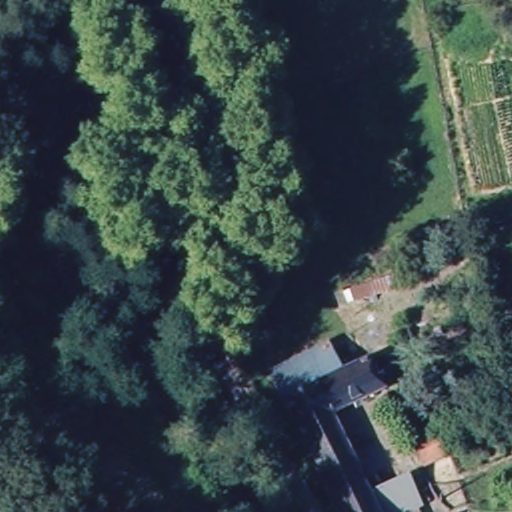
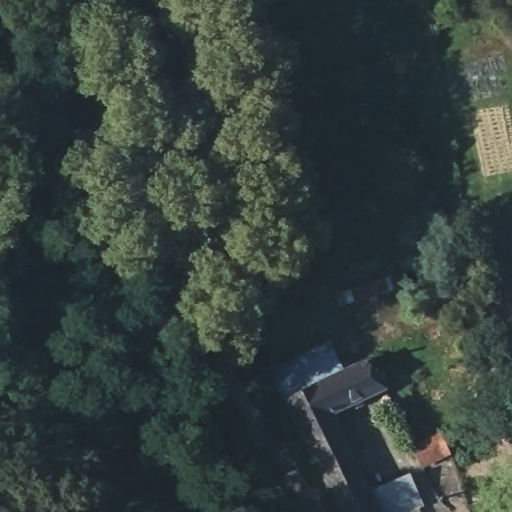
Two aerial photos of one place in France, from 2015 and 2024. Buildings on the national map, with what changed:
unchanged [(325,344),(340,375),(370,360),(385,392),(332,418),(370,498),(376,512),(338,512),(270,374),(325,344)]
unchanged [(444,439),(451,454),(425,467),(417,453),(444,439)]
unchanged [(410,479),(422,506),(412,510),(413,512),(376,512),(370,498),(410,479)]

